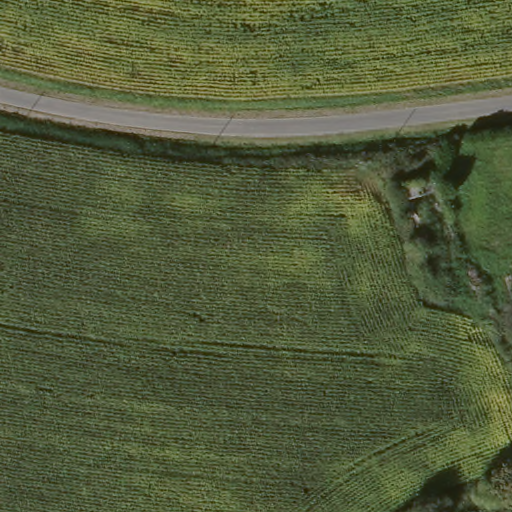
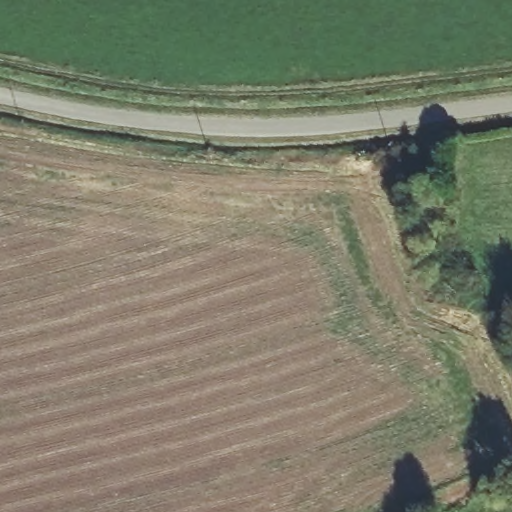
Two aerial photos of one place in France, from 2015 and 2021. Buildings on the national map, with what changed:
unchanged [(393,195),(428,184),(465,283),(431,295),(393,195)]

